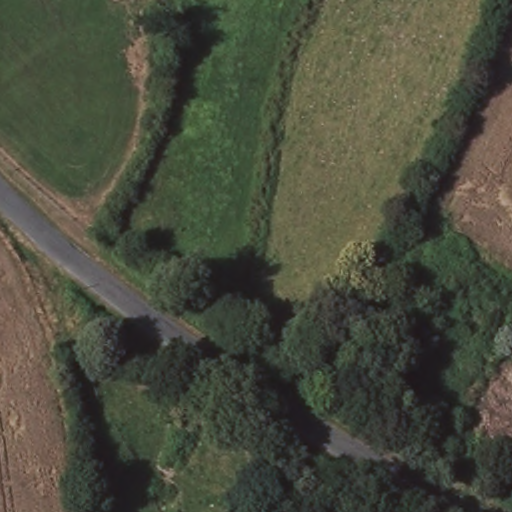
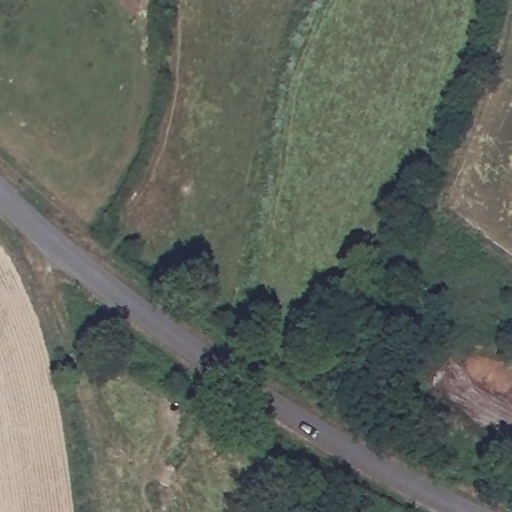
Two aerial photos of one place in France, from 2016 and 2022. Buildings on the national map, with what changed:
unchanged [(127,375),(145,387),(131,406),(111,393),(127,375)]

